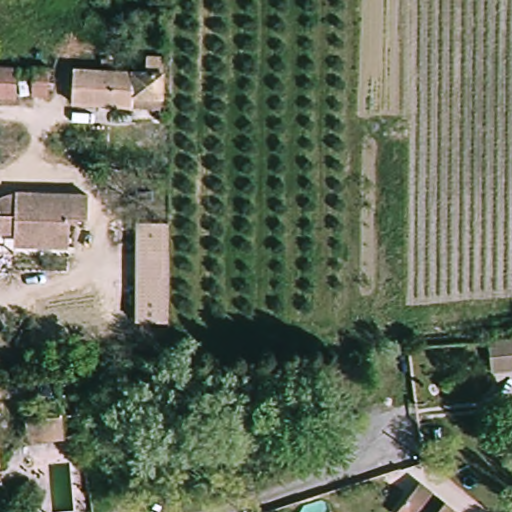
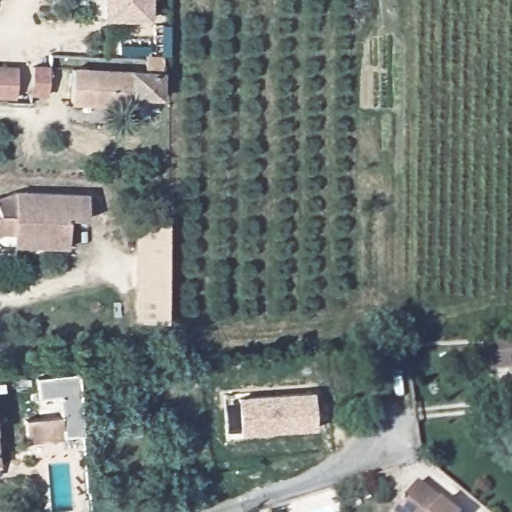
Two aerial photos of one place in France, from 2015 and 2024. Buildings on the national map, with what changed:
new [(151,21),(104,21),(104,0),(151,0),(151,21)]
unchanged [(14,94),(0,94),(0,61),(15,61),(14,94)]
unchanged [(48,64),(47,90),(26,90),(27,64),(48,64)]
unchanged [(168,95),(132,96),(133,68),(169,66),(168,95)]
unchanged [(132,96),(131,105),(71,103),(73,67),(133,68),(132,96)]
unchanged [(10,218),(10,183),(91,187),(89,226),(69,226),(68,256),(10,257),(10,218)]
unchanged [(0,220),(10,218),(10,257),(0,256),(0,220)]
unchanged [(131,229),(167,229),(167,330),(132,329),(131,229)]
unchanged [(512,337),(512,369),(490,369),(490,338),(512,337)]
unchanged [(138,360),(140,382),(119,384),(118,362),(138,360)]
new [(314,391),(317,430),(240,433),(241,430),(226,431),(224,402),(238,402),(237,396),(314,391)]
unchanged [(46,442),(44,424),(68,422),(70,440),(46,442)]
unchanged [(0,460),(0,448),(2,460),(0,460)]
unchanged [(424,480),(465,512),(396,512),(399,509),(424,480)]

